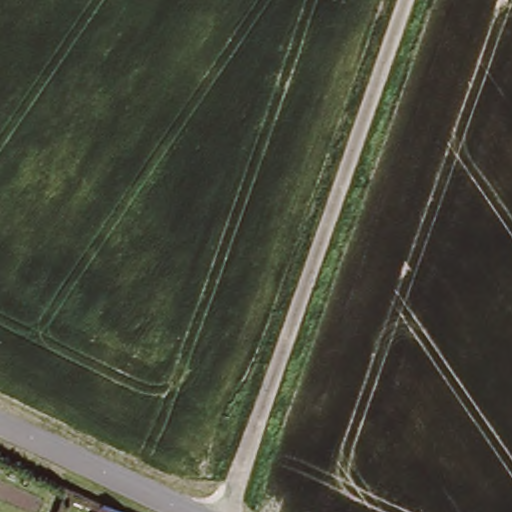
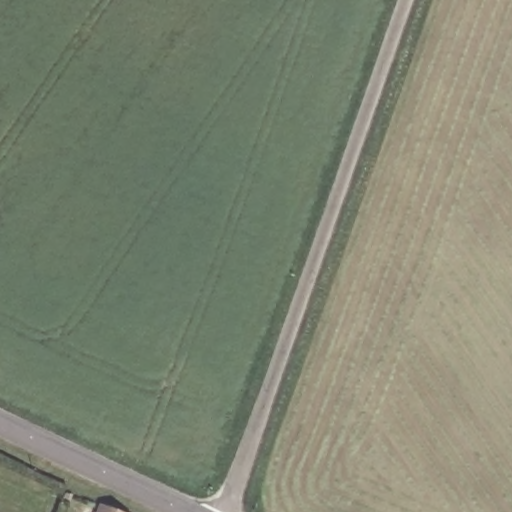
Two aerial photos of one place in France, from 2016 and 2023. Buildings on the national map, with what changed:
unchanged [(106,503),(129,512),(103,512),(106,503)]

